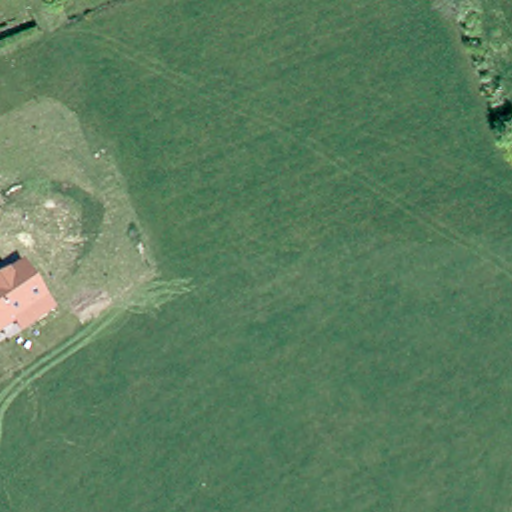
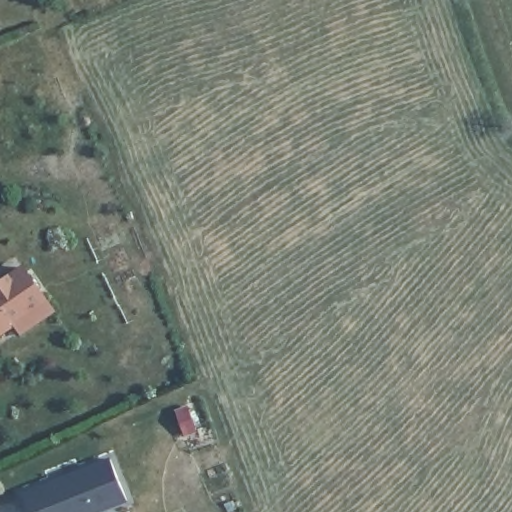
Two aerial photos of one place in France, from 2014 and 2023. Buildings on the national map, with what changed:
unchanged [(55,312),(20,335),(15,327),(0,337),(0,282),(23,266),(55,312)]
new [(103,512),(31,512),(23,491),(109,457),(129,502),(103,512)]

